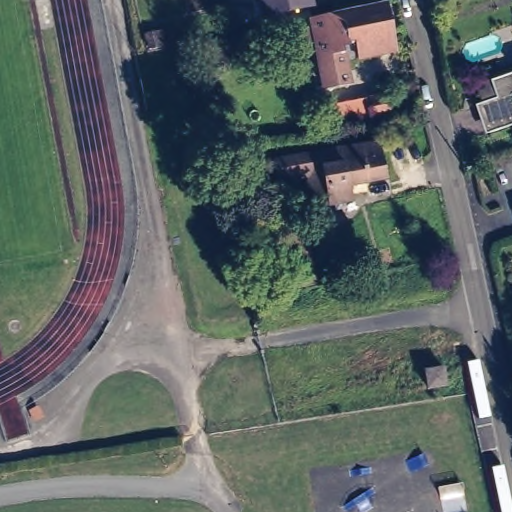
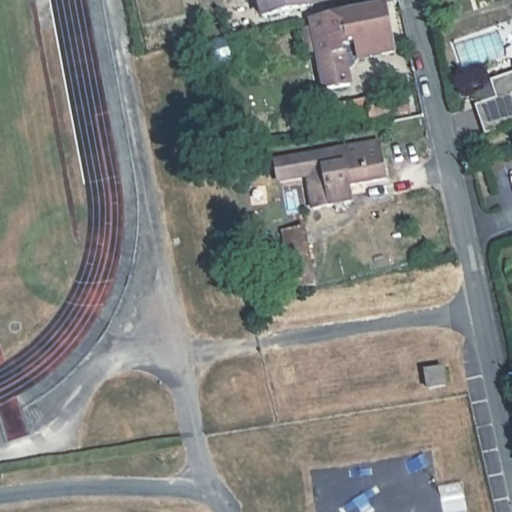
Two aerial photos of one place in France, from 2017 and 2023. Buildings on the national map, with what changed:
unchanged [(254,0),(303,0),(305,12),(258,22),(254,0)]
unchanged [(355,62),(352,46),(337,49),(345,89),(322,94),(315,57),(305,59),(300,33),(310,31),(308,24),(331,19),(332,22),(383,11),(392,55),(355,62)]
unchanged [(410,110),(368,115),(363,77),(405,72),(410,110)]
unchanged [(478,96),(476,89),(485,86),(512,76),(512,98),(507,100),(512,114),(512,129),(485,138),(475,109),(471,98),(478,96)]
unchanged [(331,217),(330,210),(309,214),(302,182),(275,187),(271,166),(374,147),(381,184),(363,189),(365,198),(346,202),(347,207),(340,209),(341,215),(331,217)]
unchanged [(315,285),(292,289),(282,231),(305,227),(315,285)]
unchanged [(445,386),(427,388),(425,371),(442,368),(445,386)]
unchanged [(458,411),(461,431),(421,437),(418,417),(458,411)]

